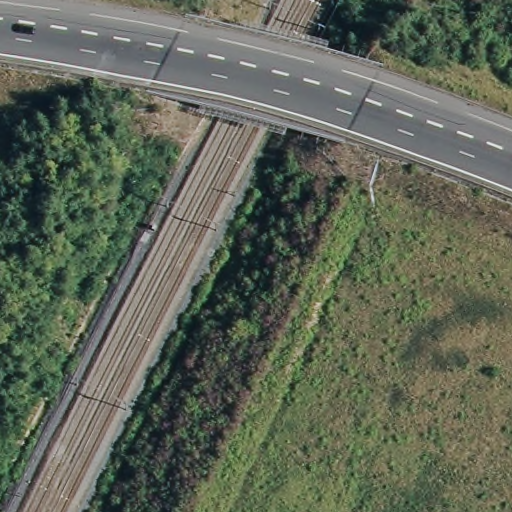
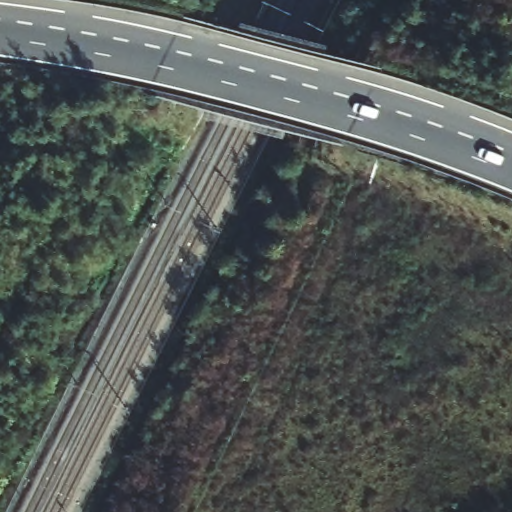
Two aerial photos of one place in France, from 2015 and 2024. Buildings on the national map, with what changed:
[]

